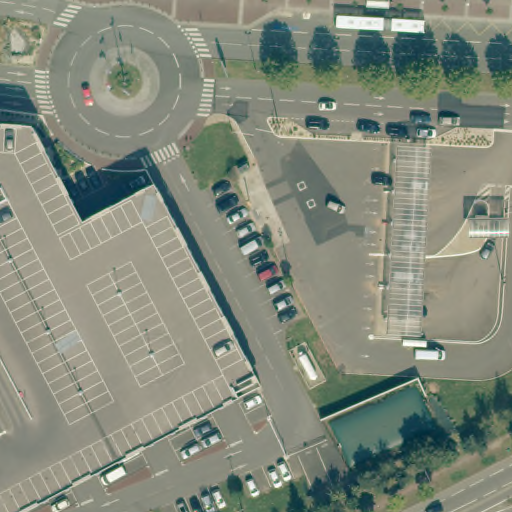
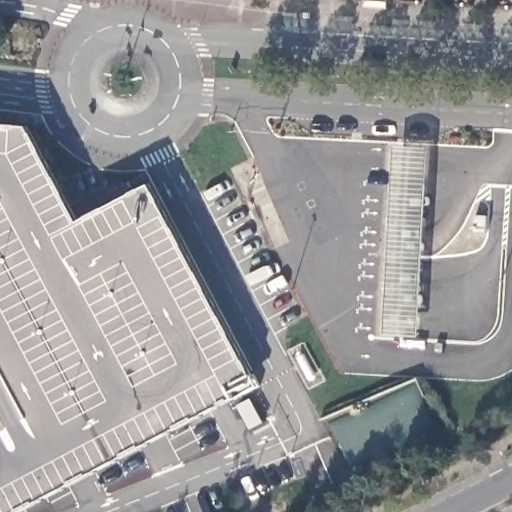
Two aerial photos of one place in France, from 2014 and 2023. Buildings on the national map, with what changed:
unchanged [(81,223),(150,185),(257,385),(21,512),(0,512),(0,126),(32,130),(81,223)]
unchanged [(423,334),(387,332),(390,270),(397,144),(431,146),(427,250),(423,334)]

